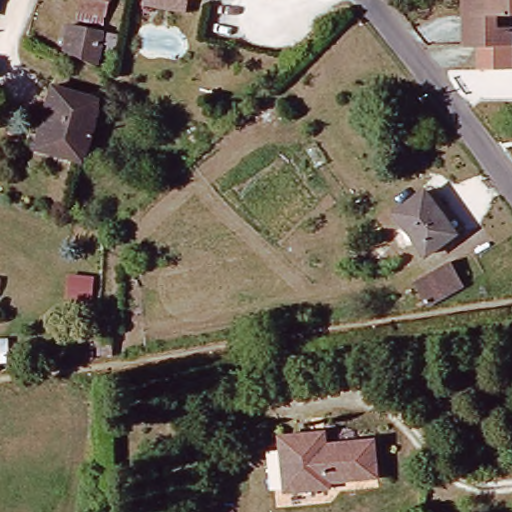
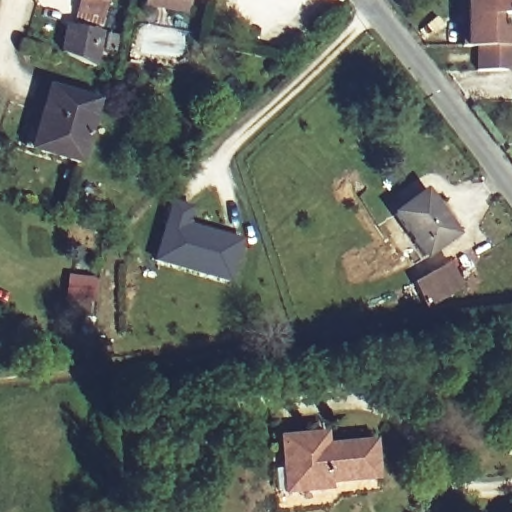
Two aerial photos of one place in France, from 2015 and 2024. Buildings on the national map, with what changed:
unchanged [(79,0),(108,0),(103,29),(75,23),(79,0)]
unchanged [(204,0),(204,2),(190,0),(204,0)]
unchanged [(204,2),(204,0),(208,0),(208,3),(204,2)]
unchanged [(512,0),(512,73),(481,72),(482,50),(472,49),(471,0),(512,0)]
unchanged [(70,31),(101,37),(96,65),(64,56),(70,31)]
unchanged [(37,151),(53,90),(95,101),(79,162),(37,151)]
unchanged [(425,261),(391,212),(425,187),(457,235),(425,261)]
new [(237,253),(229,281),(154,261),(171,204),(190,209),(185,225),(223,236),(241,241),(237,253)]
unchanged [(465,285),(431,305),(419,284),(453,264),(465,285)]
unchanged [(316,449),(374,439),(381,476),(333,485),(333,490),(289,497),(280,443),(314,437),(316,449)]

